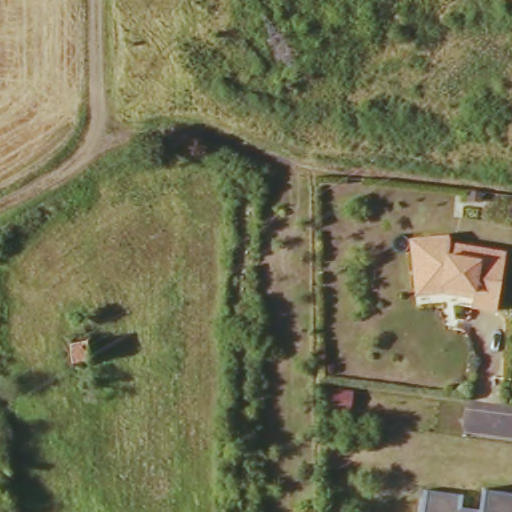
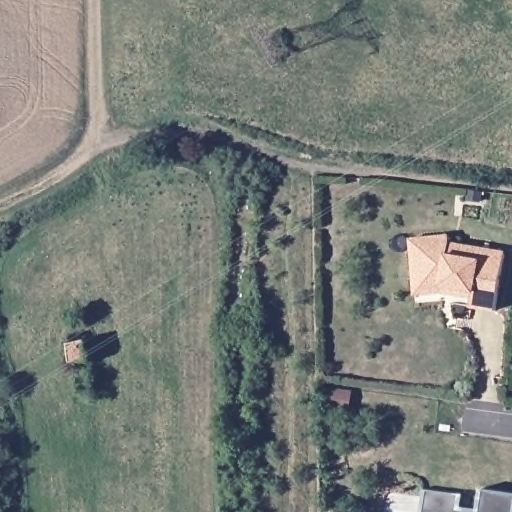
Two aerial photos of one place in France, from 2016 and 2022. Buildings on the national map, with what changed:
unchanged [(468,187),(481,189),(481,199),(468,199),(468,187)]
unchanged [(413,300),(413,288),(409,258),(407,245),(419,243),(446,240),(447,247),(503,256),(494,313),(469,311),(470,300),(438,297),(413,300)]
unchanged [(74,338),(94,338),(94,357),(74,358),(74,338)]
unchanged [(461,491),(459,506),(483,508),(485,486),(512,489),(512,512),(423,512),(426,486),(461,491)]

